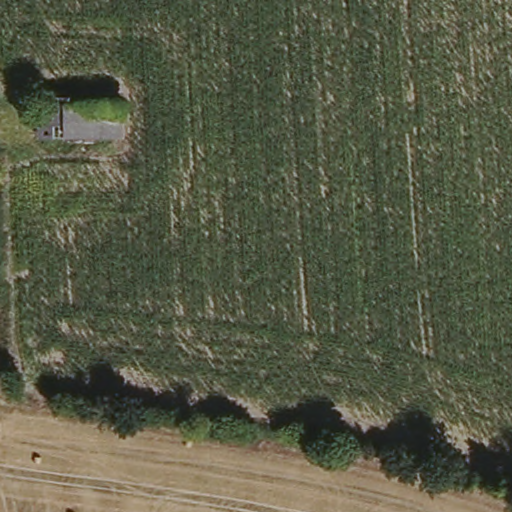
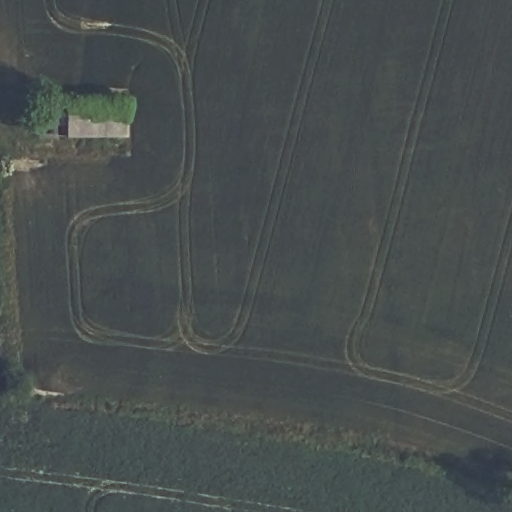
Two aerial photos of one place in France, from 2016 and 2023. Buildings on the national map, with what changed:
unchanged [(64,94),(65,101),(115,97),(117,127),(37,133),(35,112),(12,114),(10,97),(64,94)]

